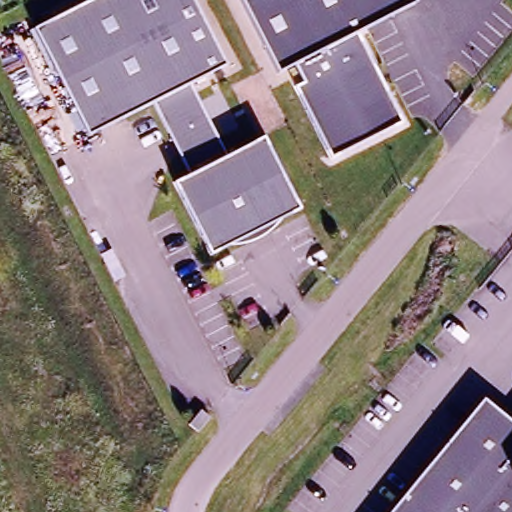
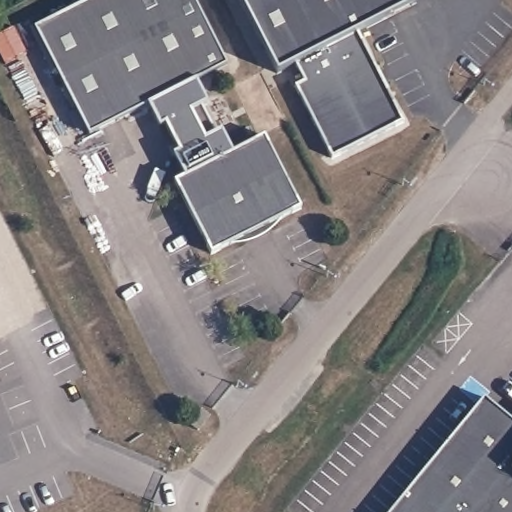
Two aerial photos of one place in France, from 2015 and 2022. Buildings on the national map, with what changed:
unchanged [(189,0),(223,68),(188,85),(224,157),(261,138),(298,211),(206,257),(169,185),(186,176),(149,105),(84,137),(29,30),(89,0),(189,0)]
unchanged [(354,30),(374,67),(364,72),(372,86),(381,82),(399,120),(328,156),(290,83),(299,79),(291,62),(272,71),(236,0),(412,0),(354,30)]
unchanged [(484,397),(512,419),(512,512),(390,512),(484,397)]
unchanged [(208,421),(196,435),(188,427),(199,413),(208,421)]

